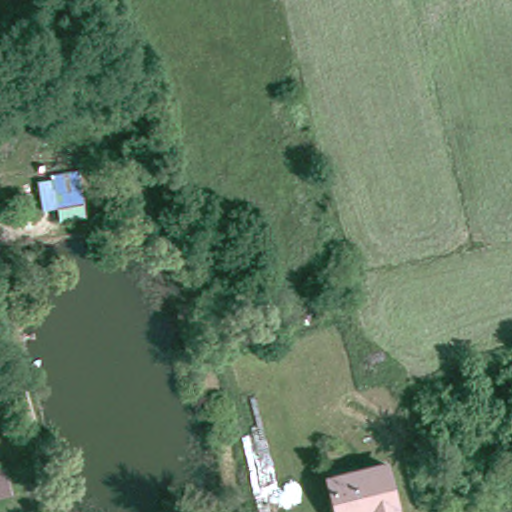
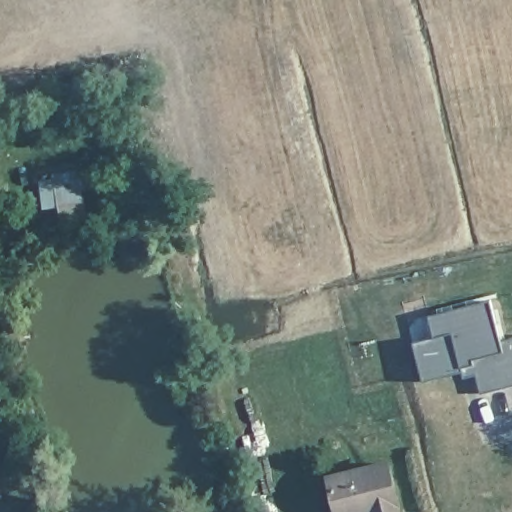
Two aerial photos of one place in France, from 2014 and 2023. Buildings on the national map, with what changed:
unchanged [(61,193),(85,189),(87,208),(64,212),(61,193)]
new [(434,336),(428,315),(490,299),(501,339),(512,336),(512,383),(480,391),(475,373),(463,377),(461,370),(420,380),(412,341),(434,336)]
unchanged [(339,512),(329,473),(386,459),(400,512),(372,512),(371,507),(350,512),(339,512)]

